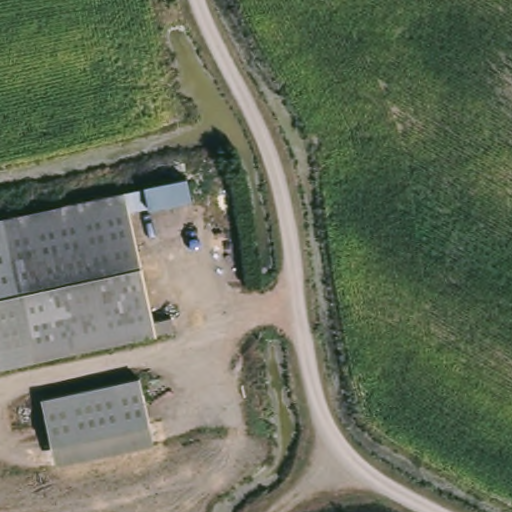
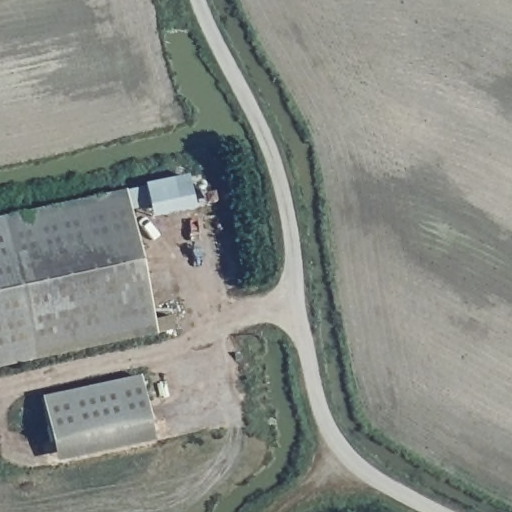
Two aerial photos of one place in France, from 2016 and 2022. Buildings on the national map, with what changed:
unchanged [(154,336),(0,370),(0,221),(123,194),(154,336)]
unchanged [(46,395),(145,376),(156,438),(59,457),(46,395)]

